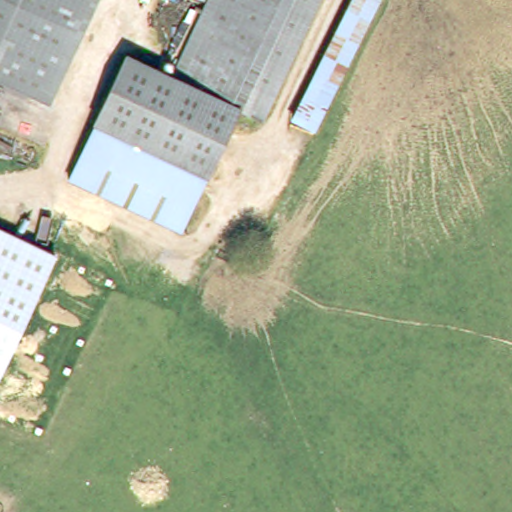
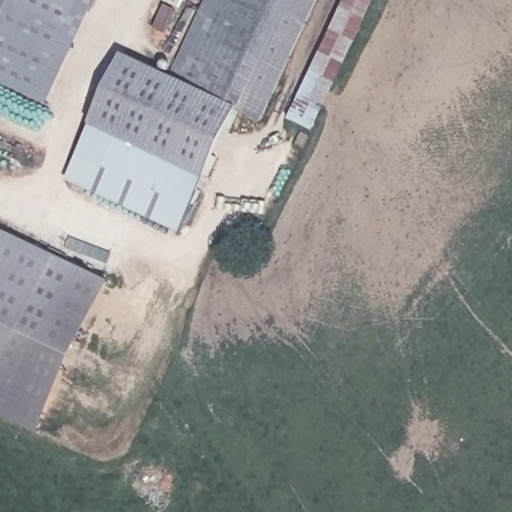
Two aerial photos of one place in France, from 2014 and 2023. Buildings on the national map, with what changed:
unchanged [(81,0),(37,95),(0,78),(0,0),(81,0)]
unchanged [(237,113),(205,179),(92,125),(123,60),(170,82),(209,0),(319,0),(260,125),(237,113)]
unchanged [(288,121),(346,0),(376,0),(312,132),(288,121)]
unchanged [(66,181),(92,125),(205,179),(180,233),(66,181)]
unchanged [(57,256),(0,377),(0,229),(57,256)]
new [(112,281),(40,434),(0,414),(0,377),(57,256),(112,281)]

